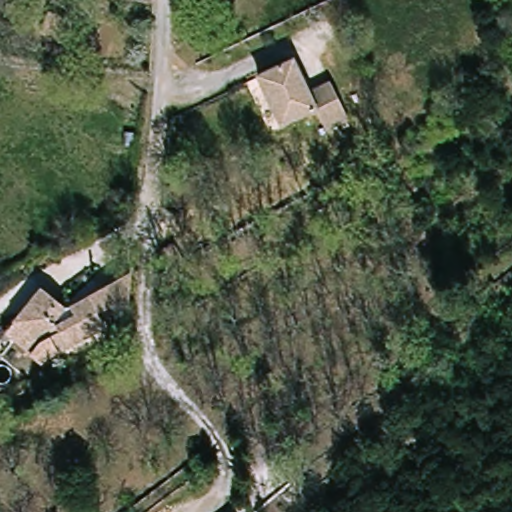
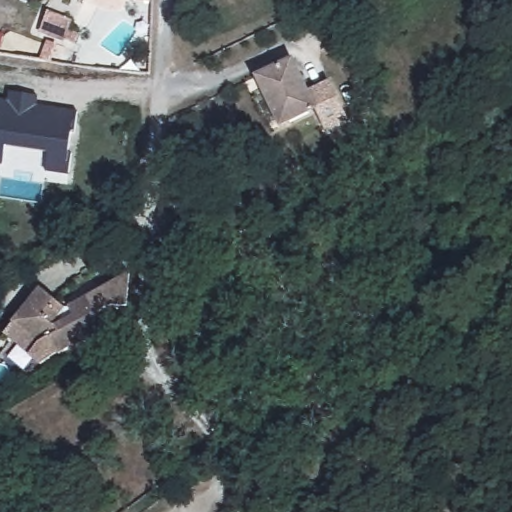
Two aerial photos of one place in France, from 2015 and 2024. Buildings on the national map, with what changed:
new [(114,2),(108,0),(115,0),(114,2)]
new [(37,12),(61,21),(54,40),(30,31),(37,12)]
unchanged [(280,122),(257,76),(293,59),(309,91),(316,105),(280,122)]
unchanged [(309,91),(331,80),(350,119),(328,129),(316,105),(309,91)]
new [(11,92),(40,95),(38,106),(76,111),(67,175),(45,172),(47,152),(6,146),(3,166),(0,166),(0,100),(10,101),(11,92)]
unchanged [(177,235),(188,259),(181,262),(175,265),(162,254),(162,252),(162,242),(177,235)]
unchanged [(104,315),(90,322),(98,335),(51,363),(43,348),(34,353),(7,333),(33,300),(57,318),(45,333),(49,336),(67,325),(63,317),(122,283),(120,315),(104,315)]

